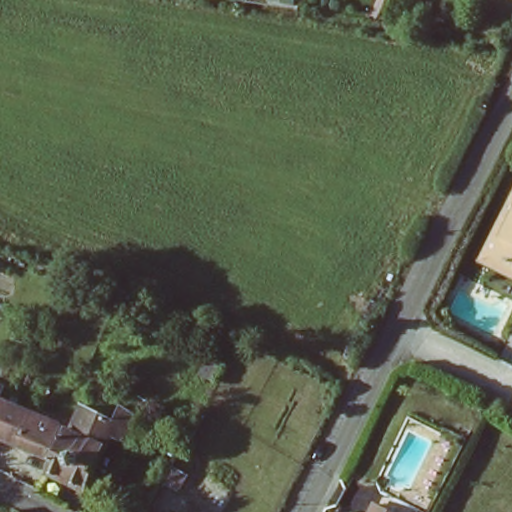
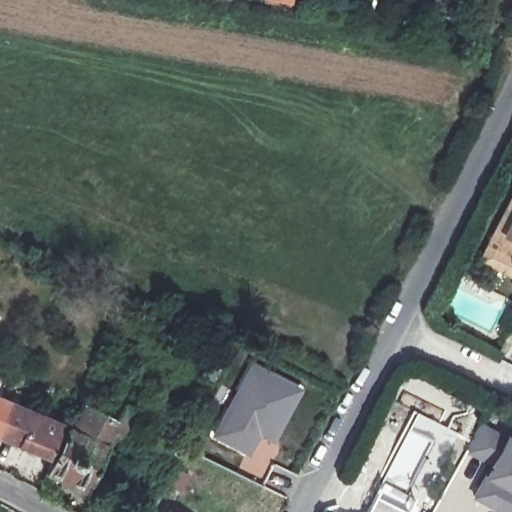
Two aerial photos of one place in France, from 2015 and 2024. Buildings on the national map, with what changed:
unchanged [(512,191),(512,196),(510,195),(512,191)]
unchanged [(495,253),(512,261),(512,275),(477,257),(510,195),(512,196),(512,220),(495,253)]
unchanged [(512,220),(512,261),(495,253),(512,220)]
new [(261,437),(250,457),(217,438),(256,368),(302,394),(282,430),(274,444),(261,437)]
unchanged [(2,403),(0,407),(0,402),(2,403)]
unchanged [(2,403),(56,425),(42,458),(0,439),(0,407),(2,403)]
unchanged [(67,429),(80,405),(110,421),(116,408),(133,418),(120,443),(104,436),(81,490),(40,474),(41,473),(61,429),(62,428),(67,429)]
new [(508,439),(512,441),(512,512),(496,512),(475,501),(492,469),(467,455),(481,429),(506,442),(508,439)]
unchanged [(172,464),(188,473),(177,490),(163,481),(172,464)]
unchanged [(380,512),(368,512),(371,507),(380,512)]
unchanged [(170,512),(167,512),(168,511),(170,512)]

